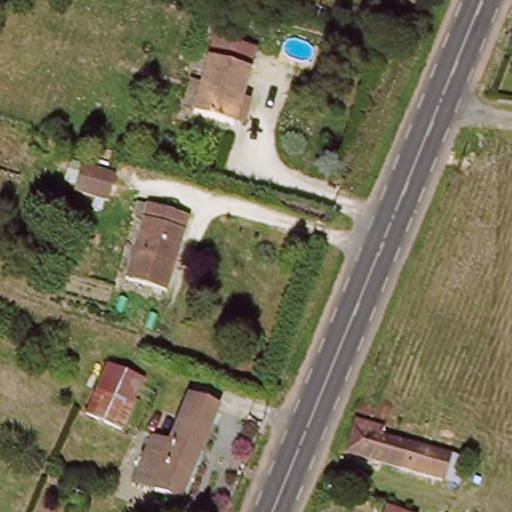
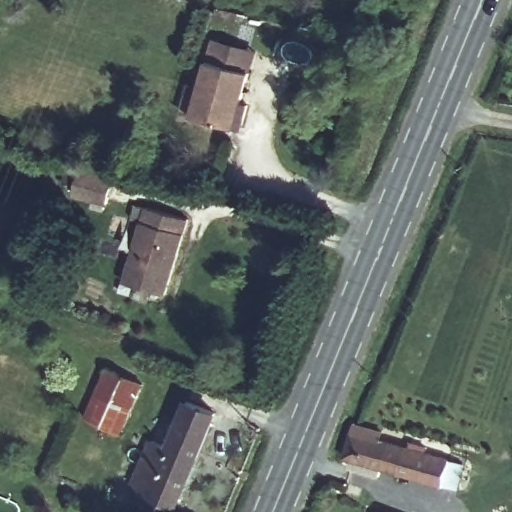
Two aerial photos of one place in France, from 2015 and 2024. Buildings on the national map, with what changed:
unchanged [(239,115),(192,103),(205,49),(247,60),(240,90),(245,92),(239,115)]
unchanged [(100,204),(68,195),(75,173),(106,182),(100,204)]
unchanged [(121,282),(140,210),(183,222),(164,294),(121,282)]
unchanged [(81,421),(103,370),(126,379),(104,431),(81,421)]
unchanged [(144,387),(121,439),(104,431),(126,379),(144,387)]
unchanged [(138,482),(155,442),(168,447),(186,405),(215,417),(177,506),(162,500),(157,490),(138,482)]
unchanged [(451,491),(438,487),(345,459),(356,431),(378,438),(376,442),(445,462),(459,466),(451,491)]

